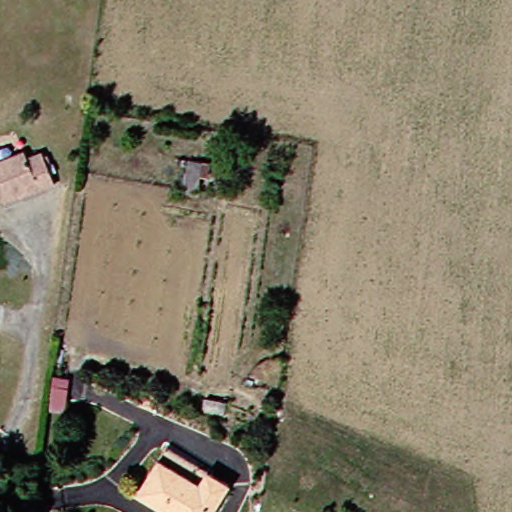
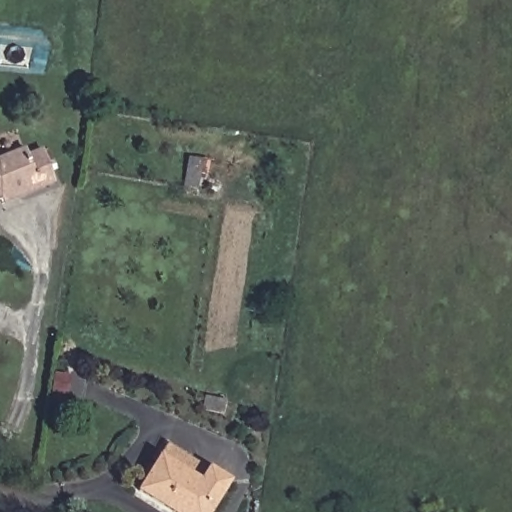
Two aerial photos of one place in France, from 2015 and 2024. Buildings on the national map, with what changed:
unchanged [(45,162),(57,196),(21,209),(19,204),(5,209),(0,208),(0,171),(27,161),(30,168),(45,162)]
unchanged [(172,512),(141,495),(169,446),(235,482),(218,512),(172,512)]

